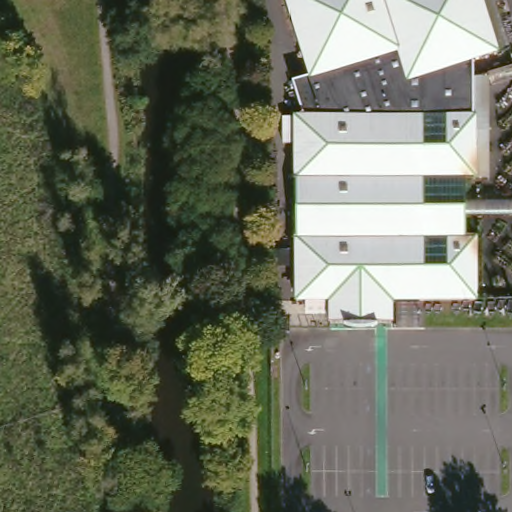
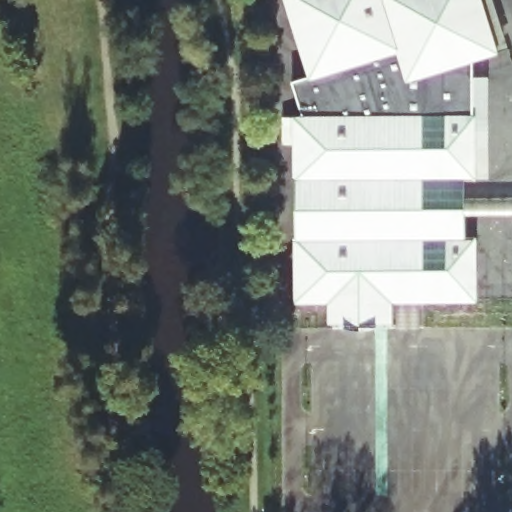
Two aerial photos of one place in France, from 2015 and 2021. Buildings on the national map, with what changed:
unchanged [(391,320),(330,321),(329,298),(295,297),(294,115),(306,114),(295,81),(311,76),(287,0),(481,0),(497,52),(474,59),(475,178),(465,177),(466,242),(476,242),(476,297),(391,297),(391,320)]

